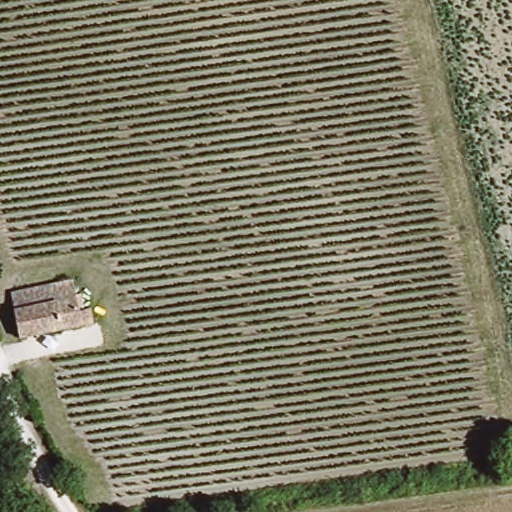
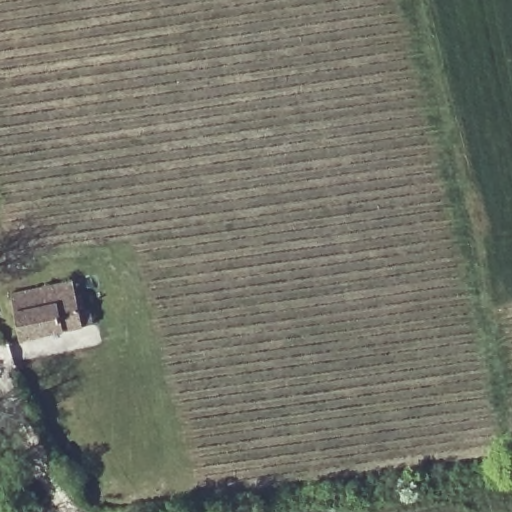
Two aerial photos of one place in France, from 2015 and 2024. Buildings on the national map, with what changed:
unchanged [(85,310),(90,308),(92,326),(55,335),(27,340),(16,292),(42,285),(76,276),(85,310)]

